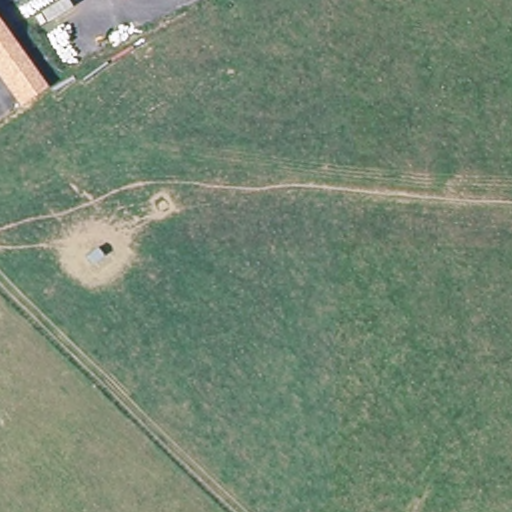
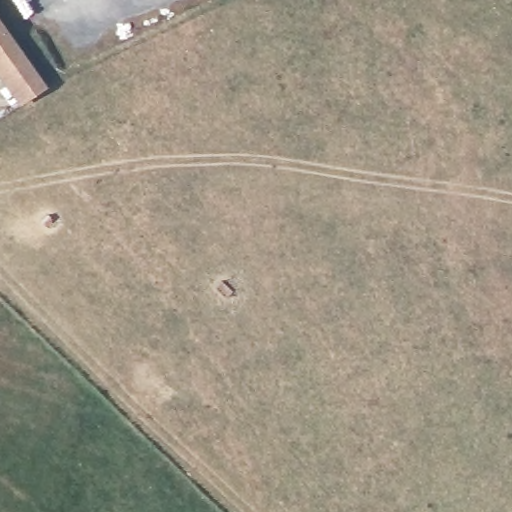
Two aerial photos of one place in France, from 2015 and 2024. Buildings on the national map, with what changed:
unchanged [(47,87),(18,106),(0,80),(0,20),(47,87)]

